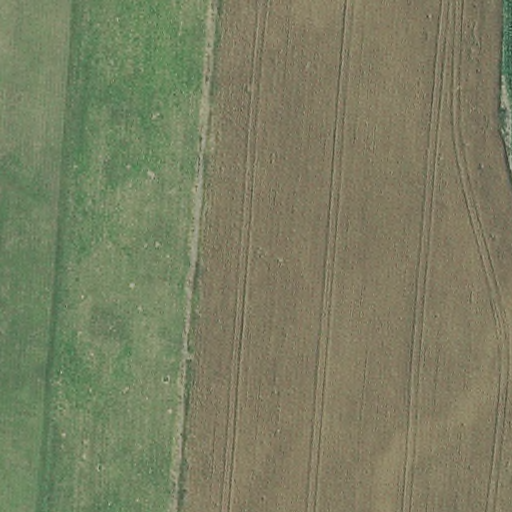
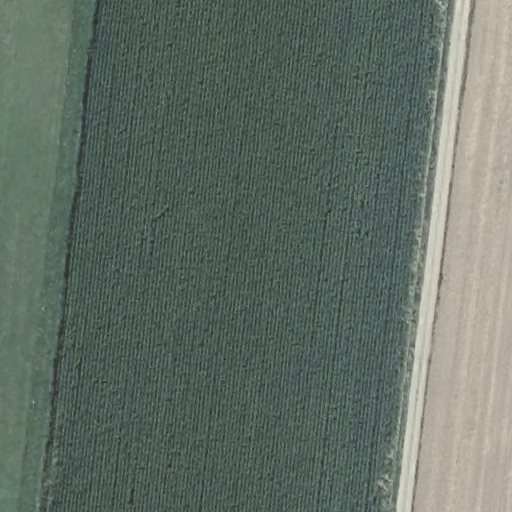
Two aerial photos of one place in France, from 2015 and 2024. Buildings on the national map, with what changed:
[]

